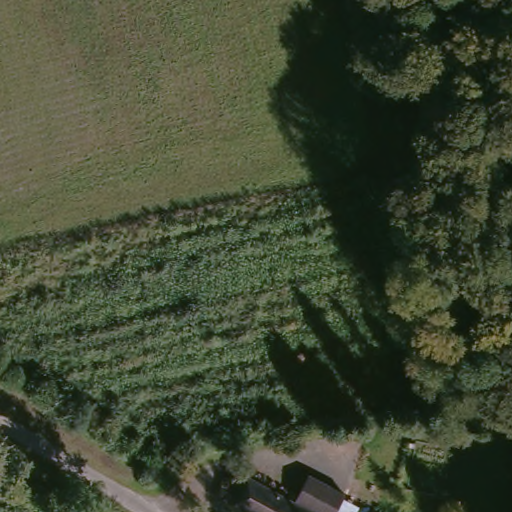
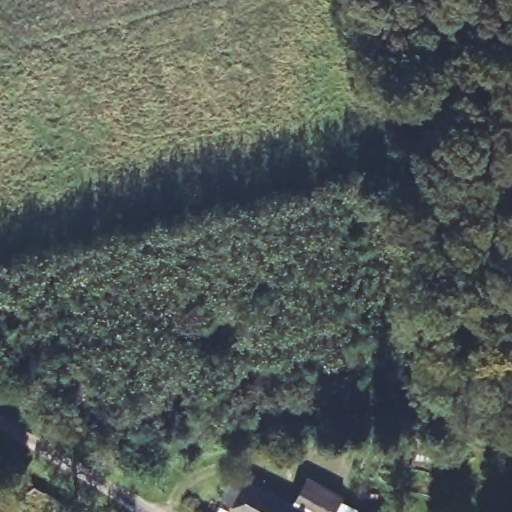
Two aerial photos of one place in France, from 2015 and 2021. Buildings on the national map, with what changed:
unchanged [(249,512),(240,507),(244,500),(228,492),(237,476),(249,483),(252,478),(305,506),(316,512),(249,512)]
unchanged [(357,507),(354,512),(316,512),(305,506),(316,486),(357,507)]

